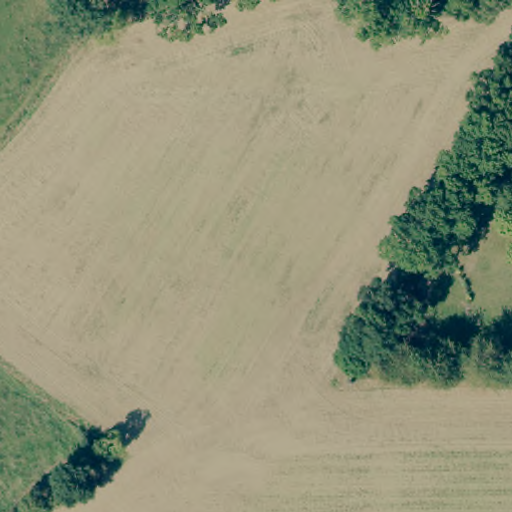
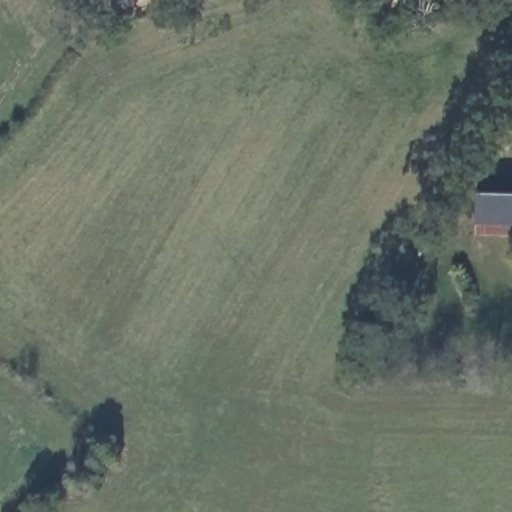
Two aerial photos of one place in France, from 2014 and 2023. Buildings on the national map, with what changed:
new [(475,227),(476,195),(512,196),(512,228),(475,227)]

